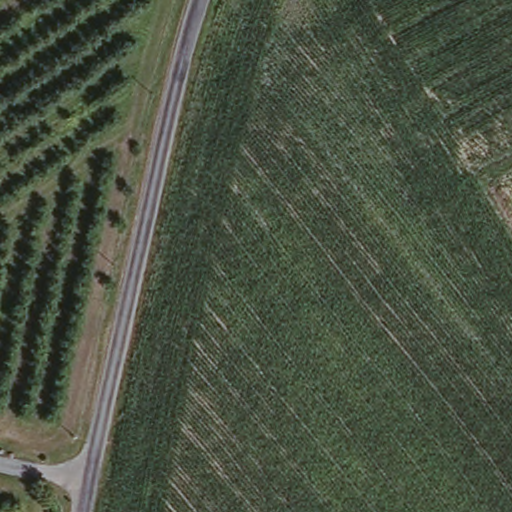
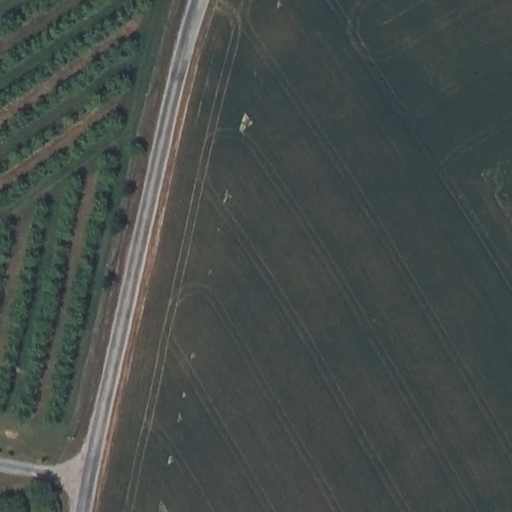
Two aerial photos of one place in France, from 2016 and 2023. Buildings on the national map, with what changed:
[]

